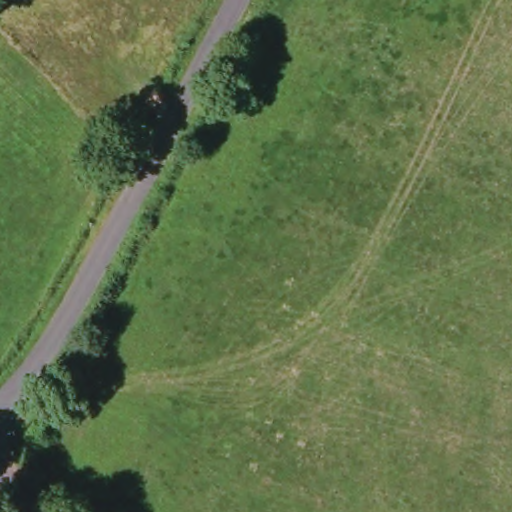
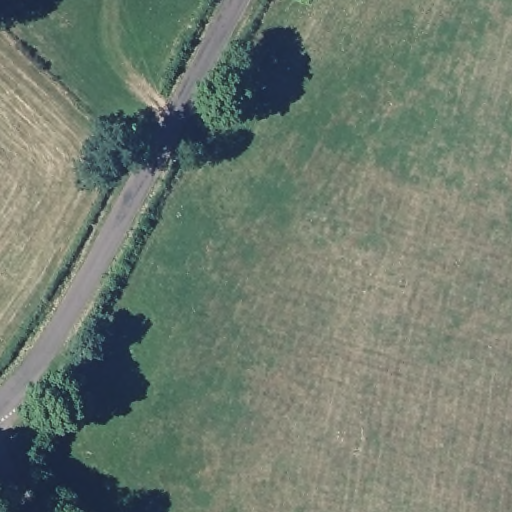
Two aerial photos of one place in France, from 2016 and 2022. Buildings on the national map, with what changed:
[]

